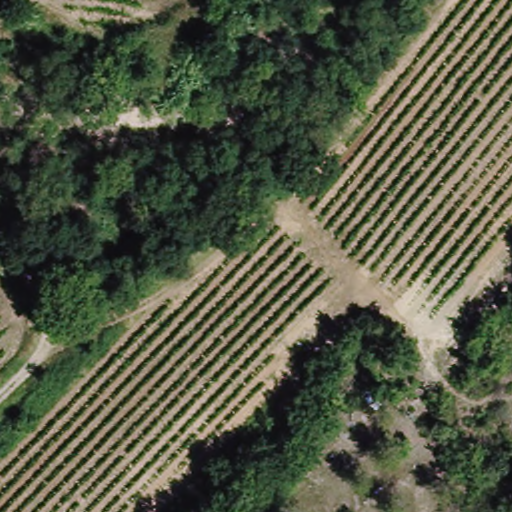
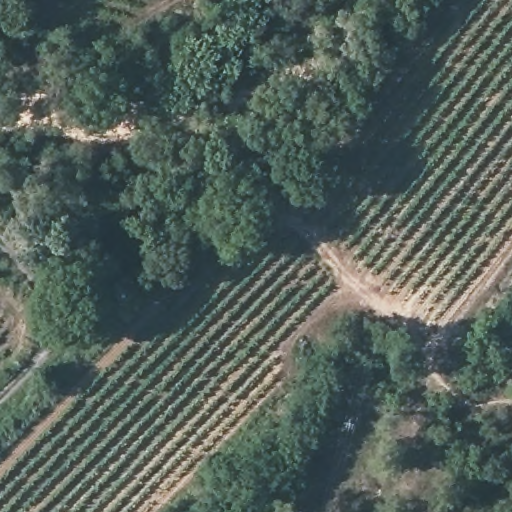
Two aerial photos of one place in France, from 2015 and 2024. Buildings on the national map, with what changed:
unchanged [(352,396),(364,388),(379,405),(375,413),(352,396)]

